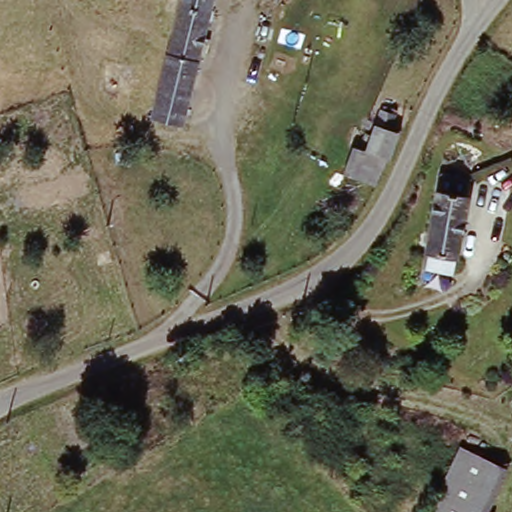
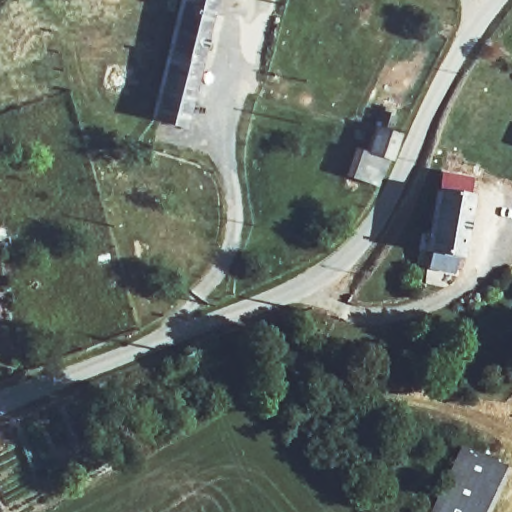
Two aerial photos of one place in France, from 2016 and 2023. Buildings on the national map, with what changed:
unchanged [(156,125),(187,0),(222,0),(188,134),(156,125)]
unchanged [(392,167),(369,158),(381,122),(391,127),(391,134),(402,141),(392,167)]
unchanged [(463,262),(430,257),(445,181),(477,187),(463,262)]
unchanged [(463,452),(512,477),(512,485),(497,512),(430,512),(463,452)]

